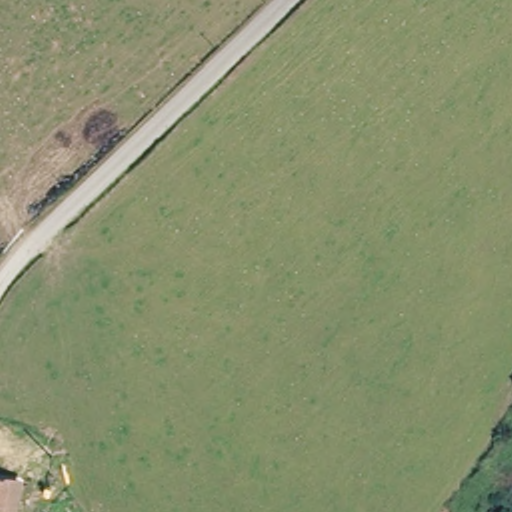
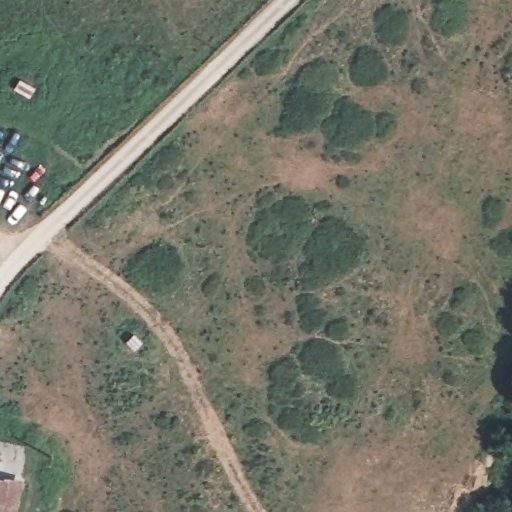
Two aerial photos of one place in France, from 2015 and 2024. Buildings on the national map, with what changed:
unchanged [(14,512),(0,512),(0,487),(19,491),(14,512)]

